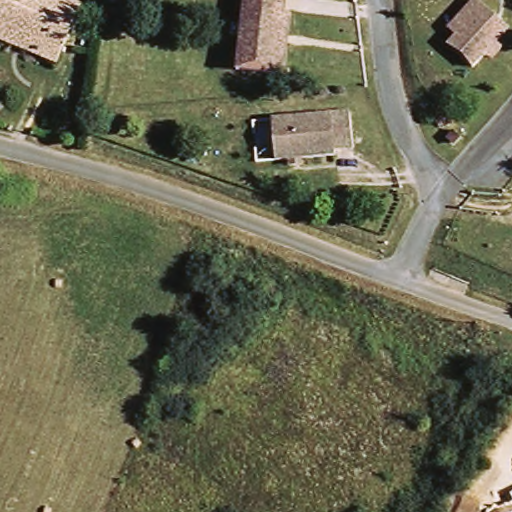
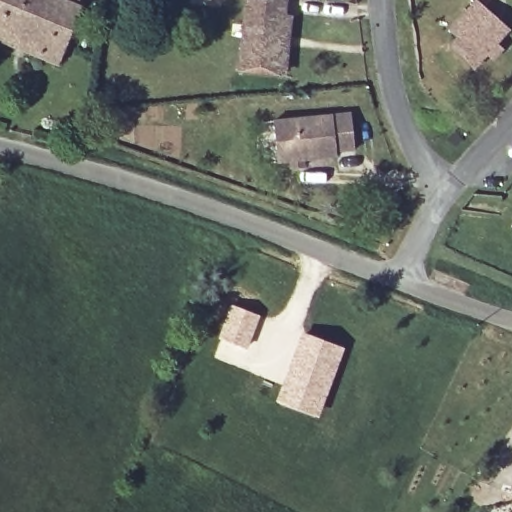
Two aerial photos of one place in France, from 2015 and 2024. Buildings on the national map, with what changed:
unchanged [(78,9),(50,64),(37,59),(0,39),(0,0),(77,0),(74,6),(78,9)]
unchanged [(229,70),(234,0),(275,0),(275,12),(280,12),(279,35),(276,74),(270,73),(229,70)]
unchanged [(475,69),(449,48),(465,27),(458,22),(474,2),(508,28),(475,69)]
unchanged [(273,122),(346,115),(351,157),(330,160),(278,166),(273,122)]
new [(229,303),(261,315),(247,350),(217,337),(229,303)]
new [(302,331),(345,347),(318,418),(275,401),(302,331)]
unchanged [(510,492),(512,491),(512,495),(510,492)]

